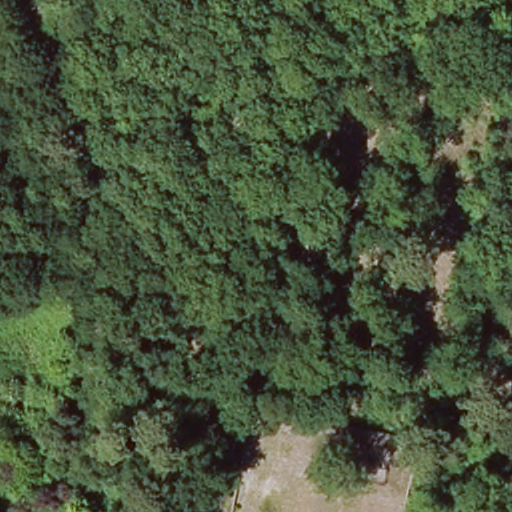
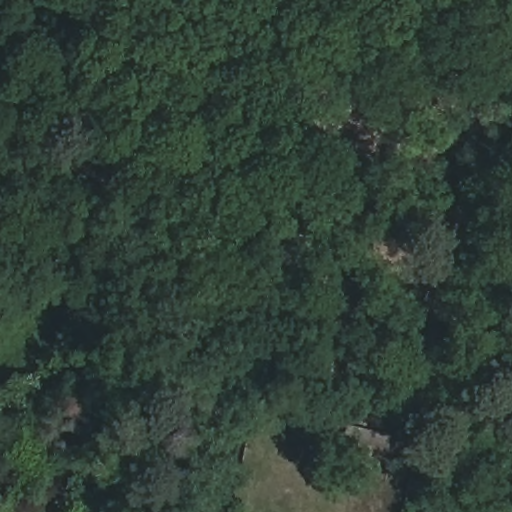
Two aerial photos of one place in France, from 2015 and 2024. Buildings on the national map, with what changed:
unchanged [(333,414),(384,420),(382,435),(331,429),(333,414)]

